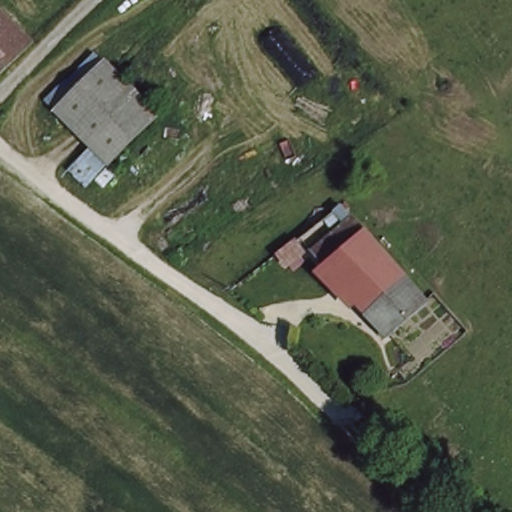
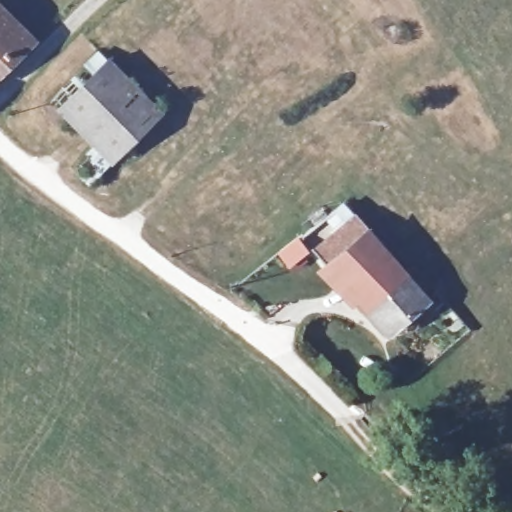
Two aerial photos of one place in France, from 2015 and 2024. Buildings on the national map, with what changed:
unchanged [(0,83),(0,1),(40,44),(0,83)]
unchanged [(48,107),(100,56),(157,110),(108,163),(48,107)]
unchanged [(310,255),(347,220),(424,301),(387,336),(310,255)]

